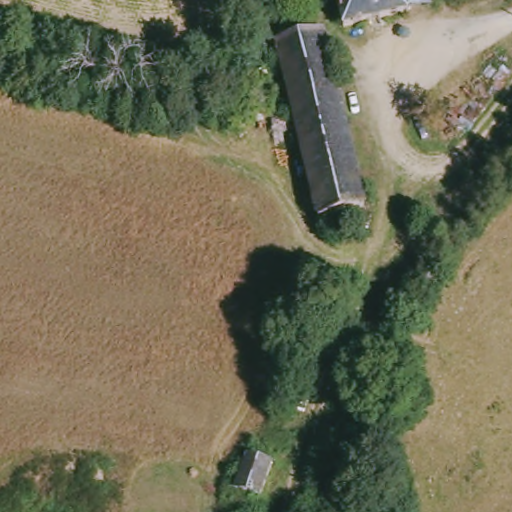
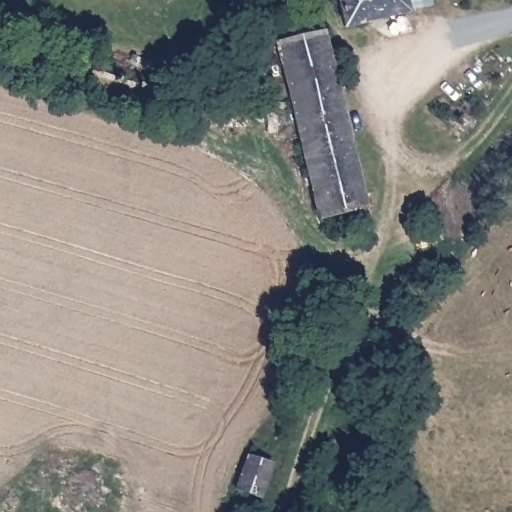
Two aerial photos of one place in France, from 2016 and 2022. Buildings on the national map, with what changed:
unchanged [(343,25),(337,0),(403,0),(405,8),(343,25)]
unchanged [(320,39),(362,209),(320,220),(319,219),(277,50),(320,39)]
unchanged [(372,382),(350,374),(362,331),(385,339),(372,382)]
unchanged [(275,459),(257,506),(251,504),(248,512),(244,512),(236,509),(240,499),(235,496),(254,450),(275,459)]

